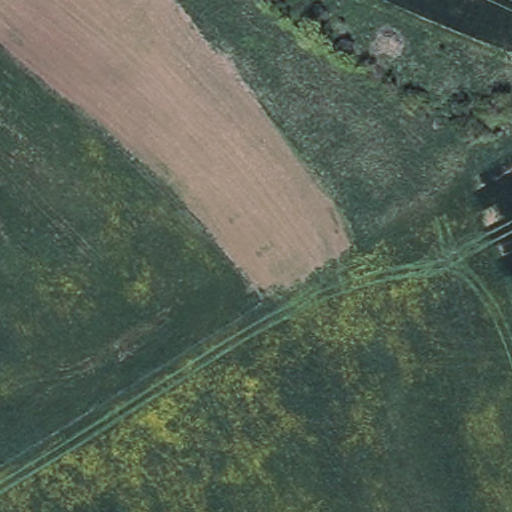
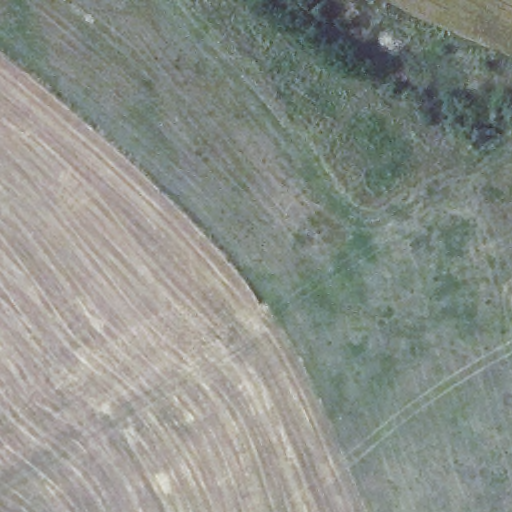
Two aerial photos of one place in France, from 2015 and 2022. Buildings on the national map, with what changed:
[]

